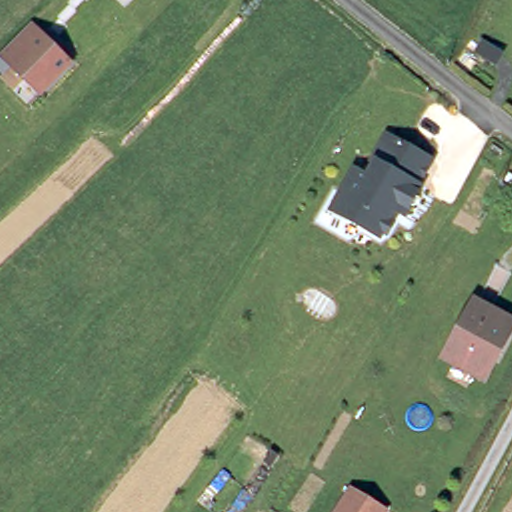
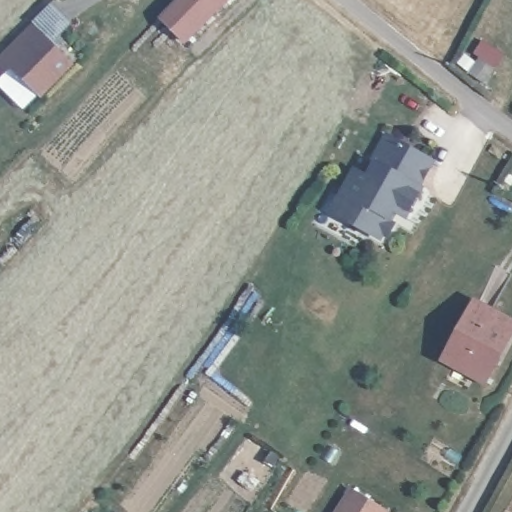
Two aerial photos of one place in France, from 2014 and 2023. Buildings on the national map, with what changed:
new [(187,44),(159,19),(178,0),(229,0),(187,44)]
unchanged [(15,71),(4,61),(10,55),(32,32),(64,64),(70,70),(43,99),(37,93),(15,71)]
unchanged [(339,194),(352,170),(365,178),(372,164),(369,162),(383,136),(397,143),(430,161),(416,186),(419,188),(402,217),(390,211),(387,218),(389,219),(390,225),(385,236),(377,237),(377,239),(352,225),(344,221),(328,212),(339,194)]
unchanged [(512,171),(512,173),(508,181),(500,178),(505,167),(512,171)]
unchanged [(485,378),(442,355),(472,298),(512,320),(512,329),(500,350),(495,360),(485,378)]
unchanged [(349,486),(354,489),(384,507),(381,512),(333,512),(342,498),(349,486)]

